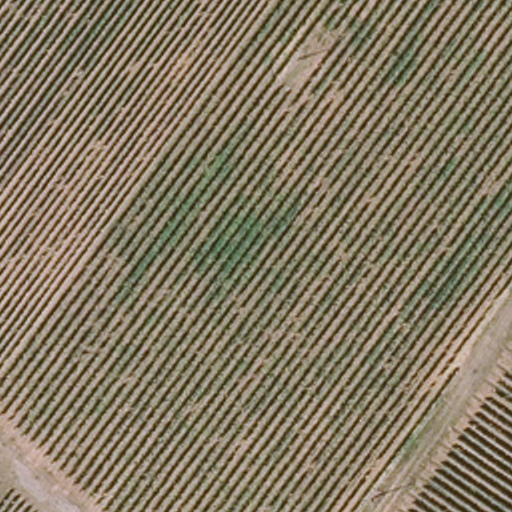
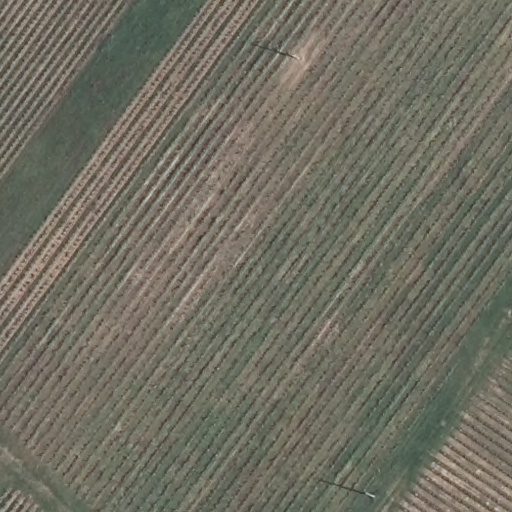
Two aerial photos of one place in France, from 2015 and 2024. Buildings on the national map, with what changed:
[]

